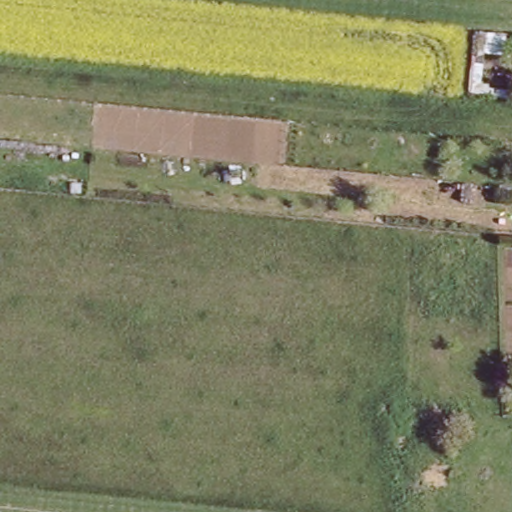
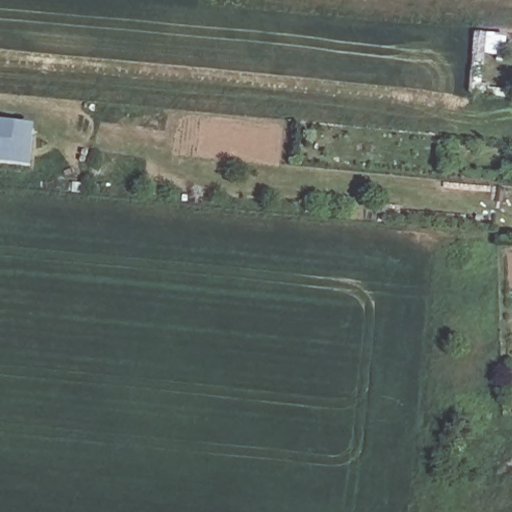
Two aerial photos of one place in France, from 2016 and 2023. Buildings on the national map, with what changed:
new [(35,125),(32,166),(11,165),(0,164),(0,122),(15,123),(35,125)]

